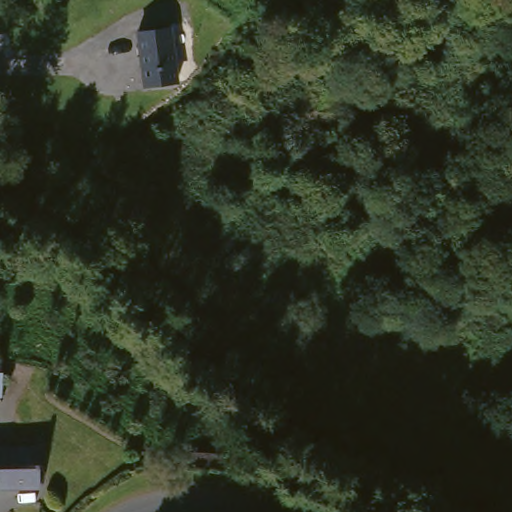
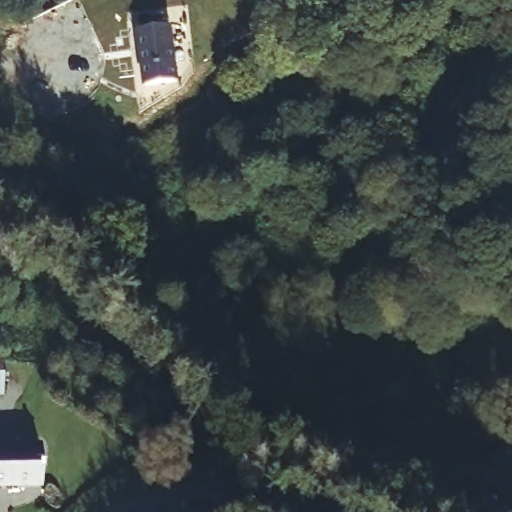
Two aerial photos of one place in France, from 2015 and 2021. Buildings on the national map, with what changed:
unchanged [(148,86),(139,50),(166,46),(176,82),(148,86)]
unchanged [(34,454),(33,494),(0,491),(0,451),(34,454)]

